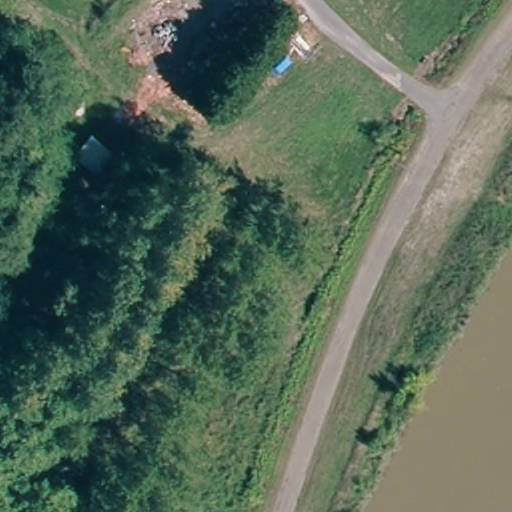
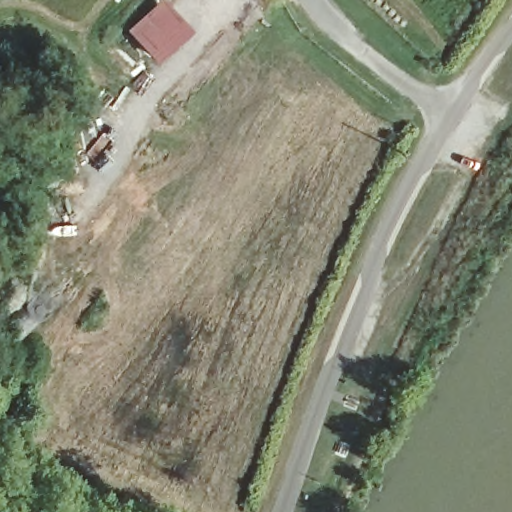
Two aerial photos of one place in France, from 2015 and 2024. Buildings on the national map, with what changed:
new [(158,0),(168,0),(195,29),(159,62),(127,27),(158,0)]

